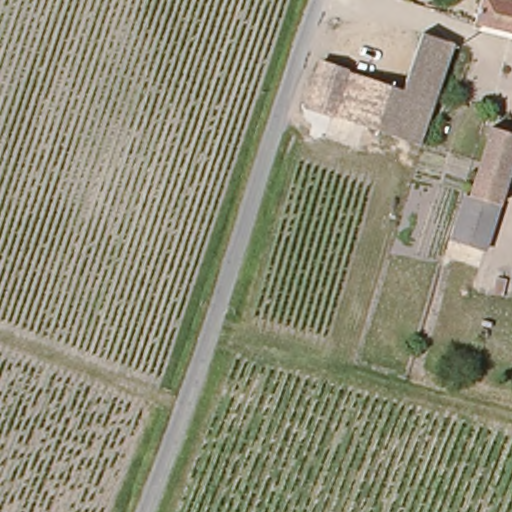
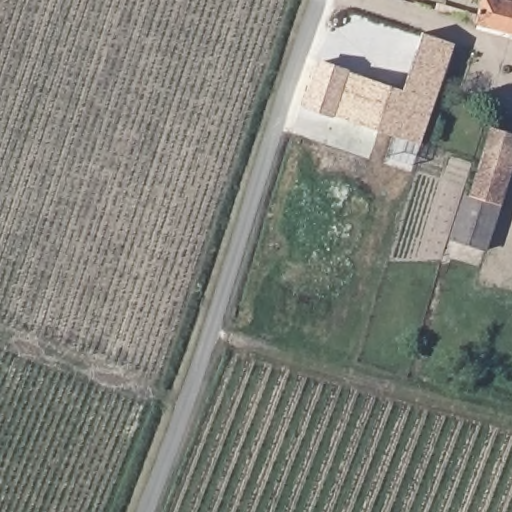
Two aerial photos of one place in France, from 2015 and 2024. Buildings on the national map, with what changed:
unchanged [(475,0),(512,0),(512,26),(471,15),(475,0)]
unchanged [(451,36),(455,37),(422,145),(329,115),(346,65),(402,85),(421,27),(451,36)]
unchanged [(329,115),(305,107),(323,55),(346,65),(329,115)]
unchanged [(512,130),(512,145),(499,187),(475,179),(492,122),(512,130)]
unchanged [(499,187),(481,246),(452,237),(466,192),(470,194),(475,179),(499,187)]

